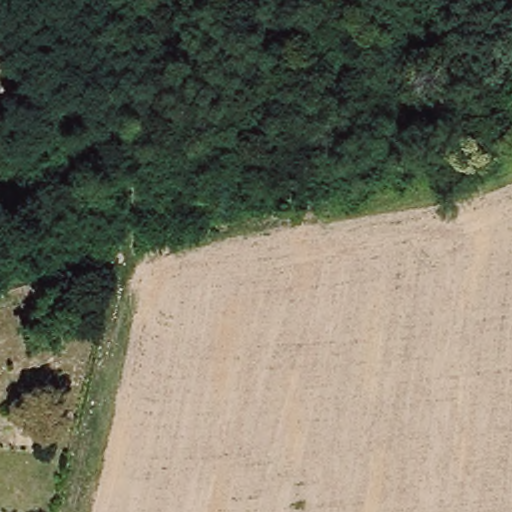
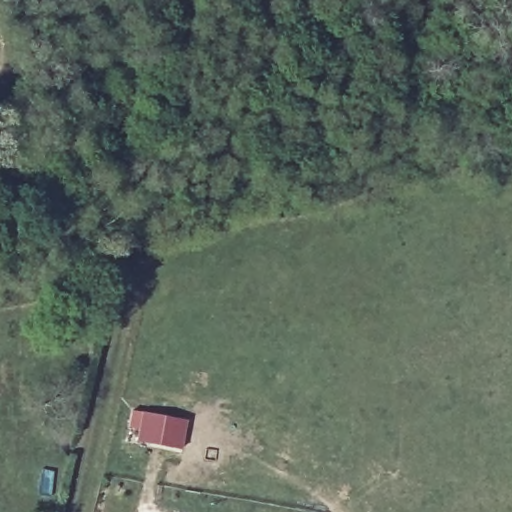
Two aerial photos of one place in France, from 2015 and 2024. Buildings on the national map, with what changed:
new [(142,412),(187,420),(181,448),(138,440),(142,412)]

